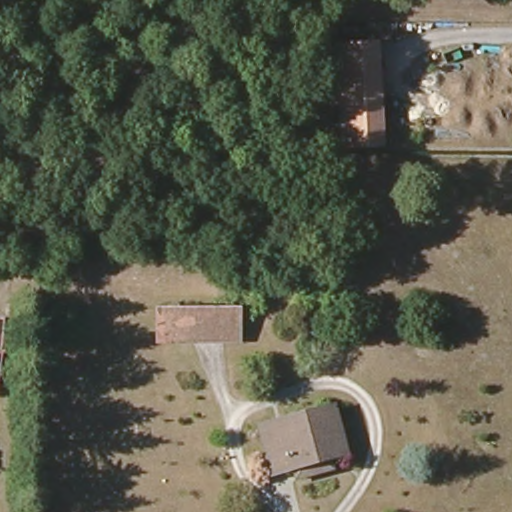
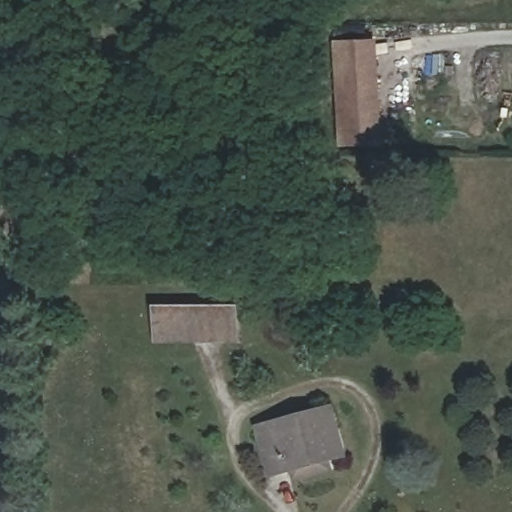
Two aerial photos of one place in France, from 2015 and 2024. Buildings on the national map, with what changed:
unchanged [(378,141),(338,143),(333,41),(373,39),(378,141)]
unchanged [(236,342),(157,342),(156,311),(236,310),(236,342)]
unchanged [(295,475),(292,465),(270,471),(258,426),(331,407),(342,452),(326,456),(328,466),(295,475)]

